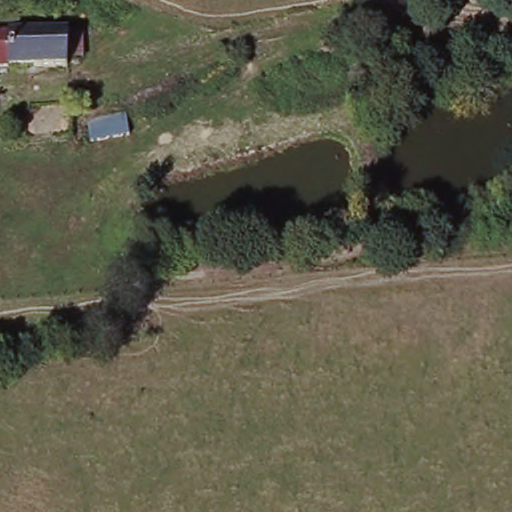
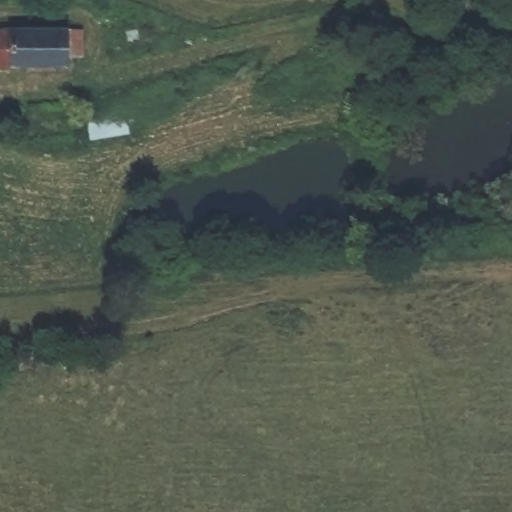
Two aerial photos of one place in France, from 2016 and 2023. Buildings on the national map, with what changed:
unchanged [(86,22),(91,60),(0,63),(0,25),(86,22)]

